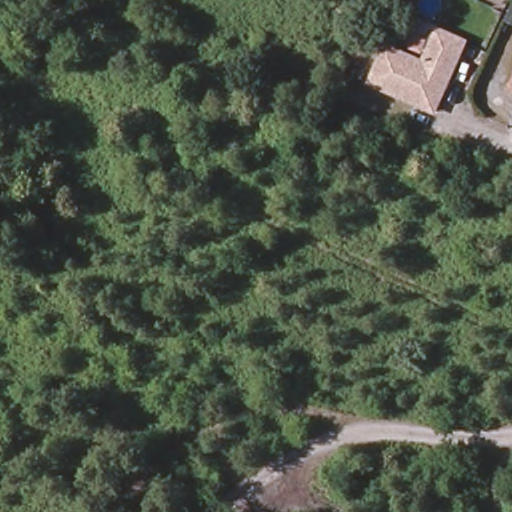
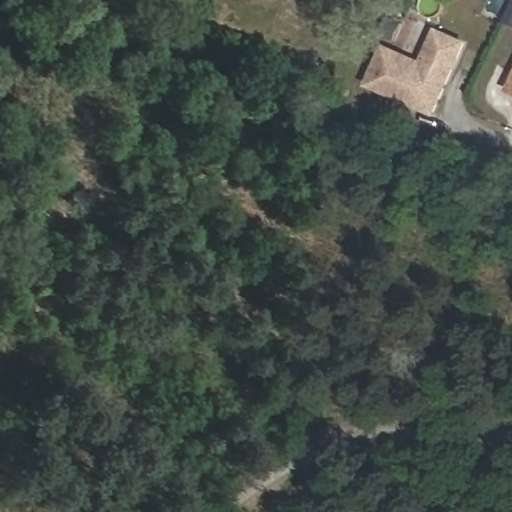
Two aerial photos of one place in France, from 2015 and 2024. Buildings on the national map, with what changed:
unchanged [(405,0),(430,0),(425,12),(404,2),(405,0)]
unchanged [(511,0),(512,0),(512,17),(504,14),(511,0)]
unchanged [(368,83),(386,46),(423,64),(438,34),(466,47),(433,115),(368,83)]
unchanged [(512,85),(509,83),(512,77),(512,85)]

